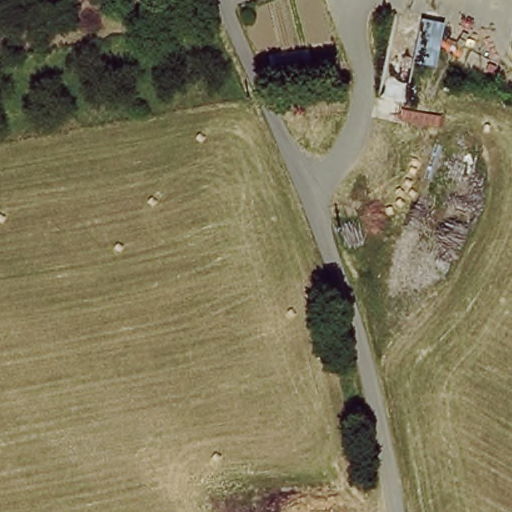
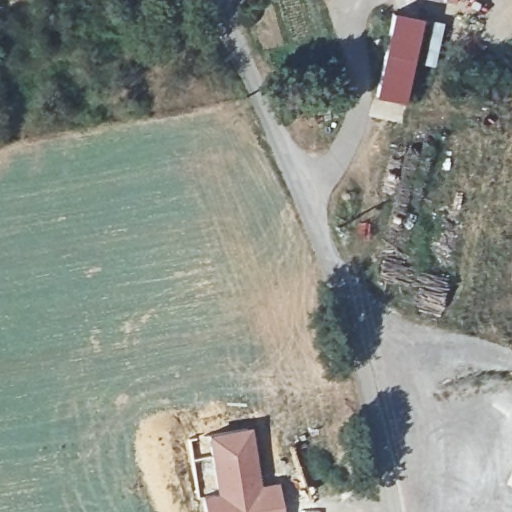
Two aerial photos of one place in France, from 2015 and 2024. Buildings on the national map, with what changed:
new [(435,66),(414,62),(406,103),(376,97),(394,12),(444,22),(435,66)]
unchanged [(505,40),(512,26),(512,45),(505,40)]
new [(251,425),(261,483),(277,480),(283,512),(202,512),(199,495),(191,457),(206,453),(203,433),(251,425)]

